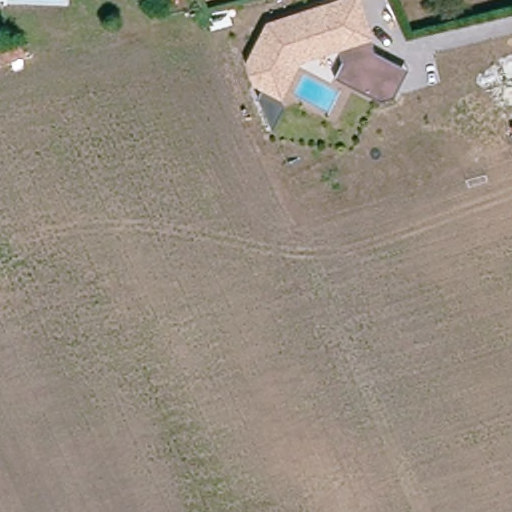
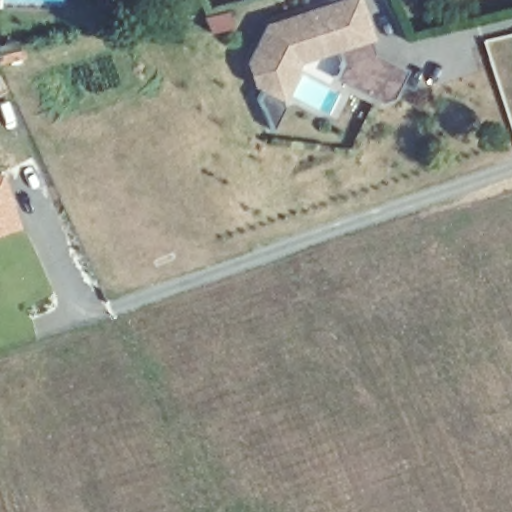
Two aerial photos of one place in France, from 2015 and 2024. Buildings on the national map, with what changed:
unchanged [(257,98),(262,90),(255,86),(247,65),(267,22),(335,0),(360,0),(376,53),(407,68),(394,95),(382,101),(336,78),(342,62),(338,50),(301,60),(280,98),(286,103),(273,129),(257,98)]
new [(2,172),(19,227),(0,234),(0,173),(2,172)]

